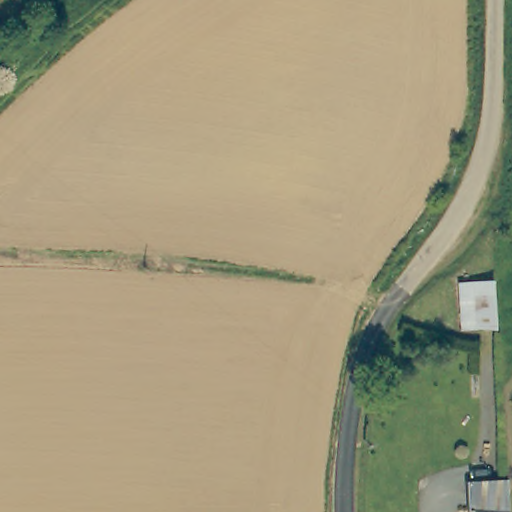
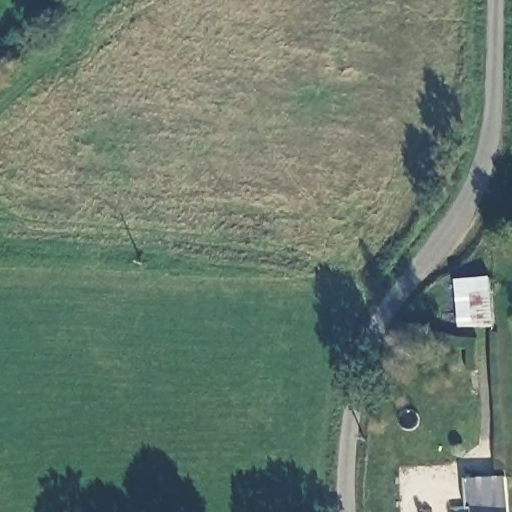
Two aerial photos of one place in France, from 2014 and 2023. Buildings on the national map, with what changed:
unchanged [(459,327),(455,280),(491,278),(494,327),(459,327)]
unchanged [(507,512),(472,512),(471,508),(466,509),(465,479),(505,478),(507,507),(507,512)]

